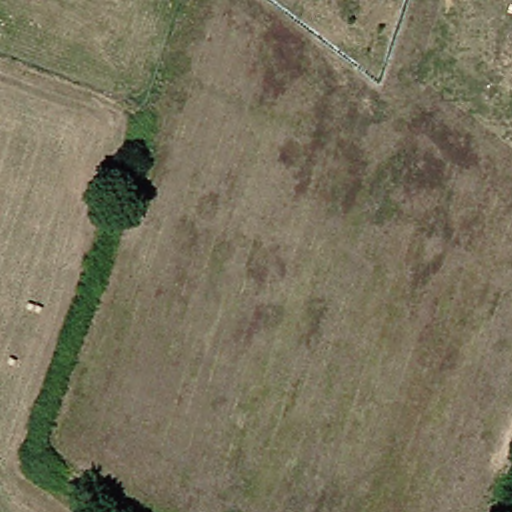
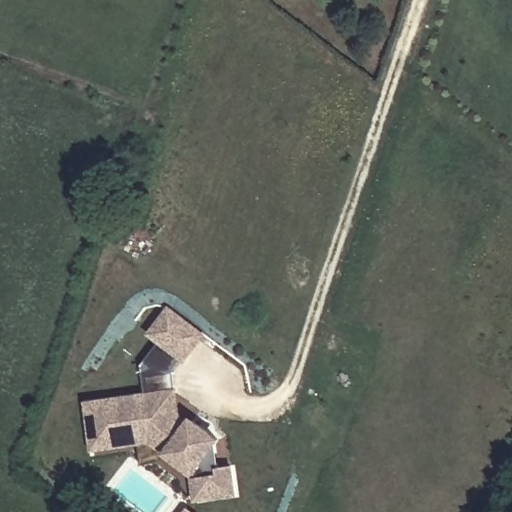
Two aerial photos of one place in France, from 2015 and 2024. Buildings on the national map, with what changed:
new [(166,309),(200,335),(182,359),(148,334),(166,309)]
new [(166,394),(168,412),(185,424),(189,422),(215,440),(212,444),(216,468),(228,466),(233,493),(195,500),(191,473),(148,441),(90,450),(84,406),(166,394)]

